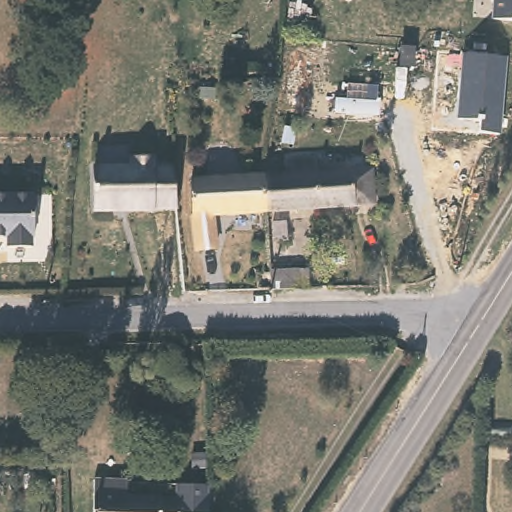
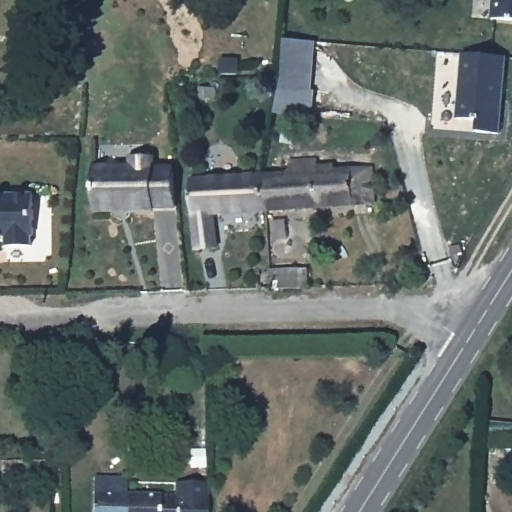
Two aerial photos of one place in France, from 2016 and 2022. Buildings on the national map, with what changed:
unchanged [(497,0),(512,0),(512,21),(495,20),(497,0)]
new [(317,41),(313,90),(315,91),(314,118),(274,115),(281,84),(284,39),(317,41)]
unchanged [(500,134),(480,131),(481,119),(456,118),(462,53),(506,57),(500,134)]
unchanged [(153,212),(153,214),(93,215),(92,172),(130,172),(130,161),(152,161),(152,173),(170,172),(175,212),(153,212)]
unchanged [(289,176),(290,164),(317,161),(318,168),(333,168),(334,173),(371,172),(374,205),(268,212),(265,179),(266,178),(289,176)]
unchanged [(265,179),(268,212),(210,216),(212,250),(195,251),(190,182),(266,178),(265,179)]
unchanged [(33,251),(7,249),(8,238),(0,237),(0,196),(39,199),(33,251)]
unchanged [(310,293),(273,294),(271,274),(309,273),(310,293)]
unchanged [(194,383),(171,384),(171,351),(194,351),(194,383)]
unchanged [(132,512),(92,512),(94,476),(124,478),(124,490),(130,491),(132,512)]
unchanged [(181,482),(181,479),(208,479),(213,479),(213,492),(214,493),(213,512),(132,512),(130,491),(180,492),(181,482)]

